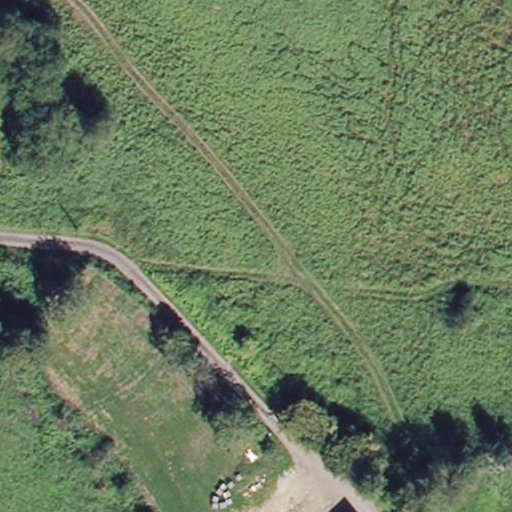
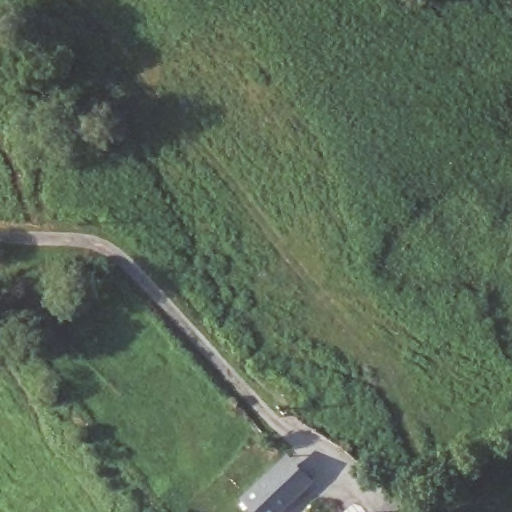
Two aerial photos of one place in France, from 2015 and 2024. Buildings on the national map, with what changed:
new [(294,468),(317,497),(299,512),(239,512),(294,468)]
demolished [(362,512),(359,512),(361,511),(362,512)]

